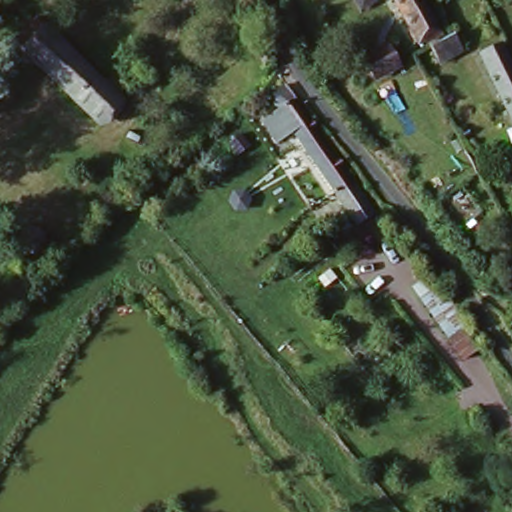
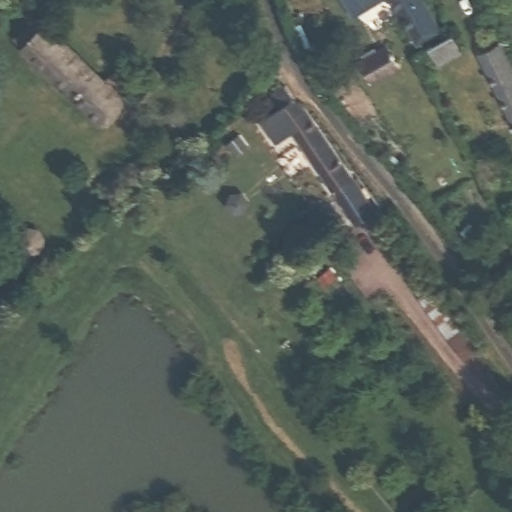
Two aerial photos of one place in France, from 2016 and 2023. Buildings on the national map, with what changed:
unchanged [(362,0),(383,0),(367,9),(362,0)]
unchanged [(412,47),(388,0),(420,0),(438,34),(412,47)]
unchanged [(108,131),(30,56),(17,44),(38,23),(50,35),(129,108),(108,131)]
unchanged [(461,55),(438,68),(429,50),(454,37),(461,55)]
unchanged [(388,44),(402,73),(373,88),(358,60),(388,44)]
unchanged [(500,46),(512,70),(512,125),(479,56),(500,46)]
unchanged [(351,221),(300,138),(293,140),(293,139),(271,150),(256,124),(282,109),(273,95),(274,84),(286,75),(371,209),(351,221)]
unchanged [(38,230),(24,238),(16,221),(30,215),(38,230)]
unchanged [(439,285),(484,351),(460,364),(418,301),(439,285)]

